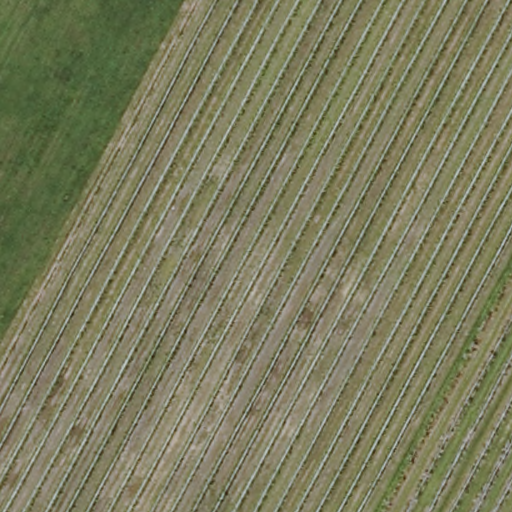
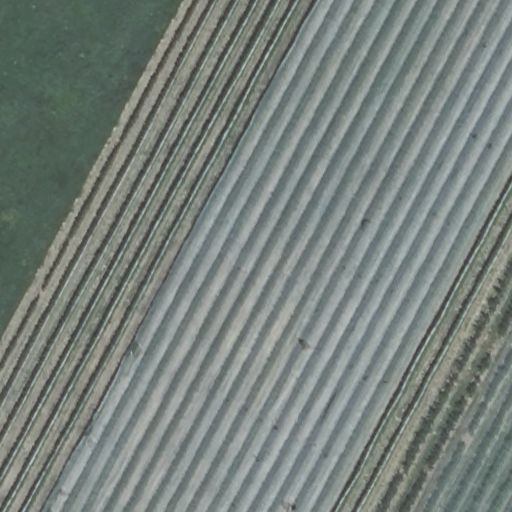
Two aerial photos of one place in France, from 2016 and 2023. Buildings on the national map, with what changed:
[]

